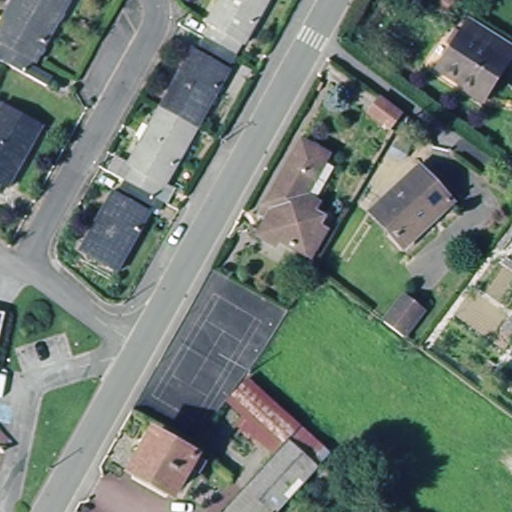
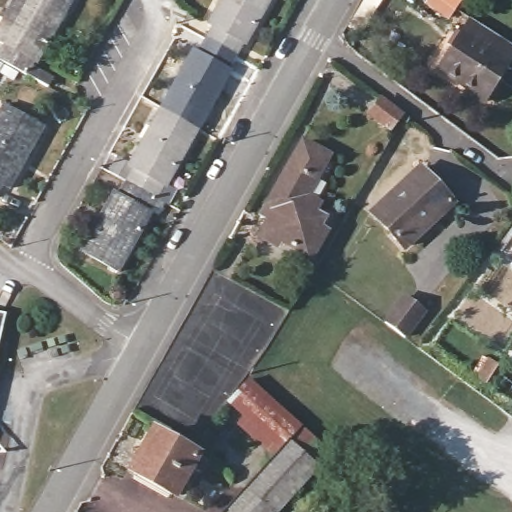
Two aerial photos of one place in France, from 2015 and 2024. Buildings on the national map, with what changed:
unchanged [(40,63),(37,62),(34,69),(54,80),(49,89),(12,69),(0,62),(0,50),(3,44),(2,42),(12,22),(16,24),(22,13),(20,10),(26,0),(71,0),(75,2),(57,32),(51,44),(40,63)]
unchanged [(207,29),(220,7),(224,0),(273,0),(263,17),(258,15),(254,25),(256,29),(245,50),(240,49),(233,60),(202,45),(210,30),(207,29)]
unchanged [(427,0),(435,0),(448,10),(443,17),(424,4),(427,0)]
unchanged [(440,73),(465,36),(475,22),(512,47),(512,65),(511,66),(487,104),(440,73)]
unchanged [(230,75),(218,95),(215,94),(207,106),(210,110),(195,135),(159,115),(169,96),(181,72),(192,54),(196,56),(202,45),(233,60),(225,74),(230,75)]
unchanged [(392,129),(368,115),(378,99),(400,114),(392,129)]
unchanged [(9,192),(6,191),(0,203),(0,125),(8,111),(43,132),(25,164),(19,174),(9,192)]
unchanged [(176,162),(170,171),(174,175),(162,194),(159,192),(153,204),(124,187),(106,177),(112,165),(126,172),(137,154),(150,130),(159,115),(195,135),(180,164),(176,162)]
unchanged [(305,201),(316,207),(312,215),(318,219),(313,227),(321,232),(307,259),(285,248),(282,252),(258,240),(265,224),(259,220),(293,157),(319,170),(305,201)]
unchanged [(410,250),(375,214),(424,170),(456,205),(410,250)]
unchanged [(150,217),(139,238),(135,235),(129,247),(131,250),(116,275),(80,256),(89,240),(101,217),(113,197),(118,199),(124,187),(153,204),(146,215),(150,217)]
unchanged [(390,321),(409,295),(430,311),(410,337),(390,321)]
unchanged [(0,358),(0,318),(9,320),(0,358)]
unchanged [(323,468),(291,440),(284,450),(234,401),(255,380),(336,455),(323,468)]
unchanged [(195,473),(182,467),(166,494),(130,473),(151,434),(188,454),(188,456),(200,462),(195,473)]
unchanged [(284,450),(291,440),(323,468),(283,512),(227,512),(247,488),(284,450)]

